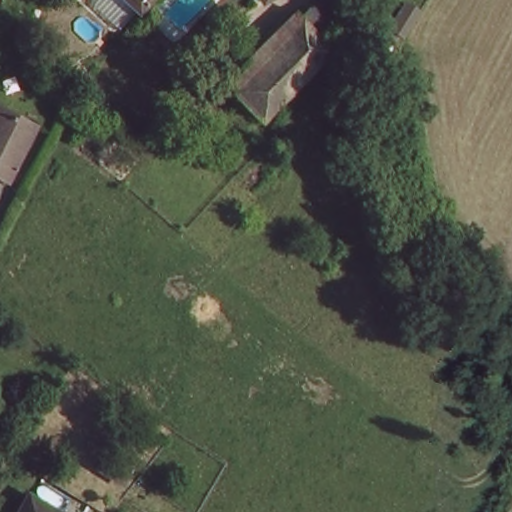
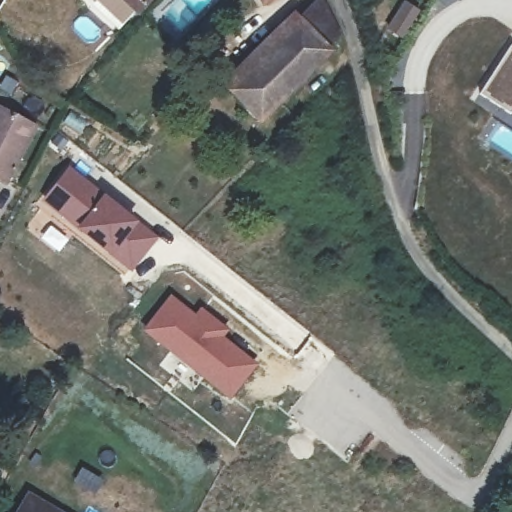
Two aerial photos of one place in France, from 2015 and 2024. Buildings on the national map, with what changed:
unchanged [(130,0),(139,0),(136,5),(130,0)]
unchanged [(237,100),(221,82),(295,12),(307,0),(320,0),(331,32),(332,54),(255,121),(237,100)]
unchanged [(265,4),(262,0),(270,0),(265,4)]
unchanged [(399,4),(414,12),(397,38),(382,30),(399,4)]
new [(509,112),(480,91),(510,43),(512,45),(512,107),(509,112)]
unchanged [(0,181),(0,108),(4,110),(35,129),(5,184),(0,181)]
new [(41,201),(68,165),(159,238),(131,272),(41,201)]
new [(230,400),(142,330),(170,294),(196,314),(201,307),(229,329),(223,336),(258,364),(230,400)]
unchanged [(50,512),(17,512),(25,498),(50,512)]

